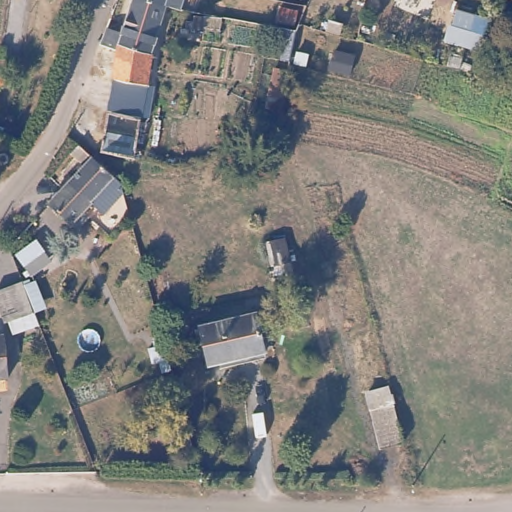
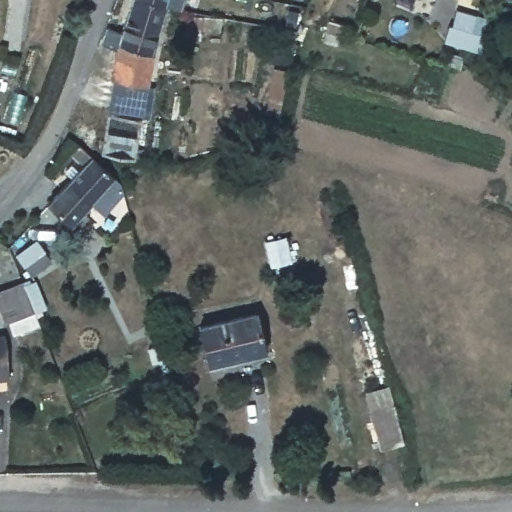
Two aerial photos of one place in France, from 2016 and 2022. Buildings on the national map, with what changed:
unchanged [(153,50),(148,75),(145,89),(107,80),(114,54),(98,49),(96,48),(102,30),(106,31),(117,33),(126,2),(127,0),(162,0),(166,1),(153,50)]
unchanged [(166,1),(162,0),(184,0),(181,5),(166,1)]
unchanged [(348,6),(345,16),(331,11),(334,1),(348,6)]
unchanged [(478,26),(473,40),(450,32),(455,17),(478,26)]
unchanged [(200,21),(198,34),(173,30),(175,18),(200,21)]
unchanged [(140,119),(135,152),(95,144),(102,110),(140,119)]
unchanged [(102,170),(100,173),(110,180),(110,181),(99,196),(90,190),(83,200),(84,200),(65,224),(40,203),(73,161),(63,153),(71,144),(102,170)]
unchanged [(26,296),(5,304),(0,287),(0,285),(20,279),(26,296)]
unchanged [(261,347),(206,361),(196,324),(252,309),(261,347)]
unchanged [(10,373),(0,375),(0,333),(3,332),(10,373)]
unchanged [(401,437),(376,443),(365,401),(390,394),(401,437)]

